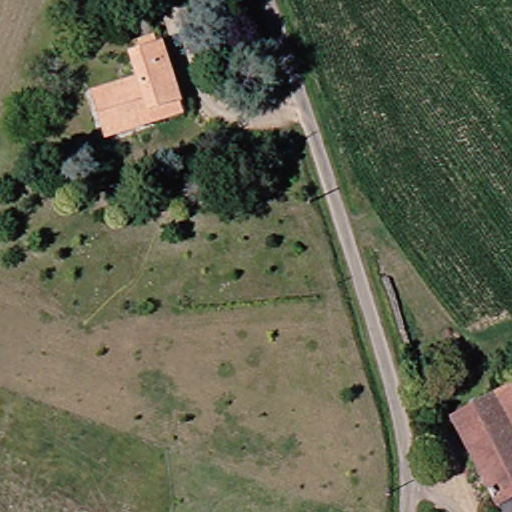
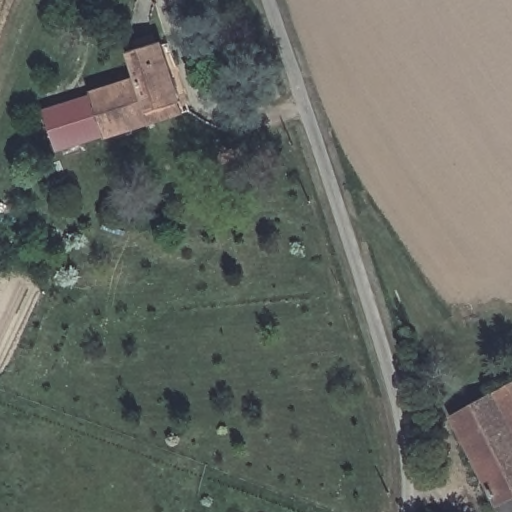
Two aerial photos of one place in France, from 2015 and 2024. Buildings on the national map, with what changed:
unchanged [(151,121),(110,135),(96,92),(139,77),(135,56),(162,47),(180,101),(182,111),(151,121)]
new [(110,135),(58,152),(44,110),(96,92),(110,135)]
unchanged [(512,386),(512,403),(505,390),(512,386)]
unchanged [(512,403),(512,497),(505,503),(458,417),(505,390),(512,403)]
unchanged [(510,512),(505,503),(512,497),(512,512),(510,512)]

